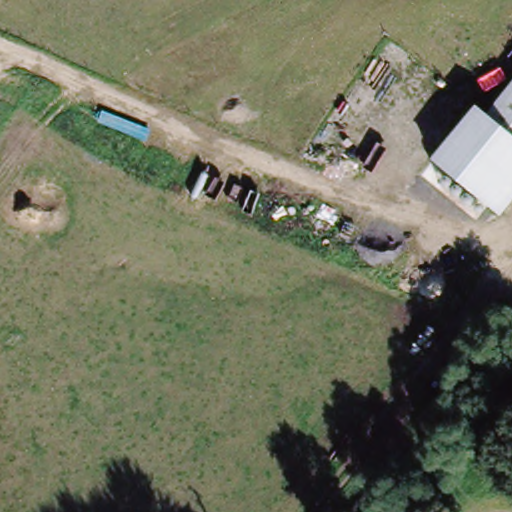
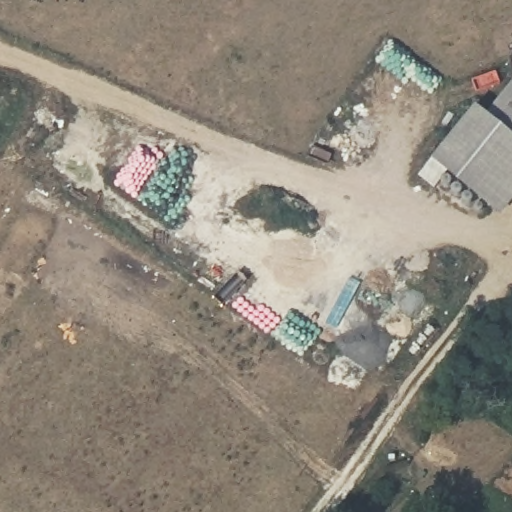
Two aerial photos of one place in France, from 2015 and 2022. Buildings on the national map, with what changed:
unchanged [(498,101),(512,84),(512,112),(498,101)]
unchanged [(502,219),(486,207),(478,218),(438,188),(448,174),(431,161),(477,106),(487,114),(498,101),(512,112),(512,207),(502,219)]

